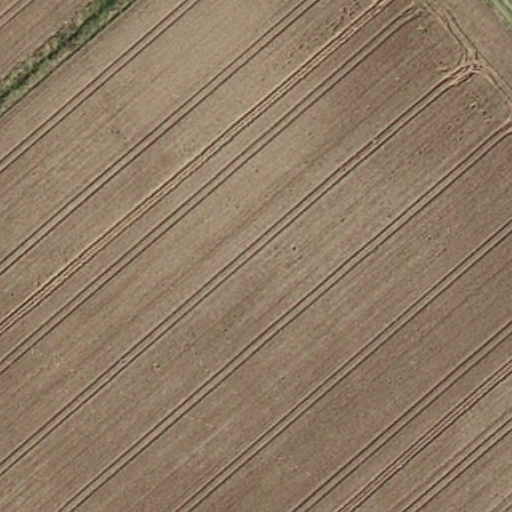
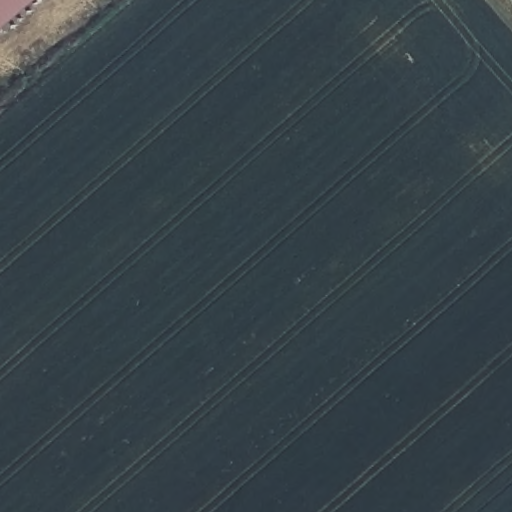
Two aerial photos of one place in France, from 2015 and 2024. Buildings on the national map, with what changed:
new [(0,27),(0,0),(31,0),(0,27)]

